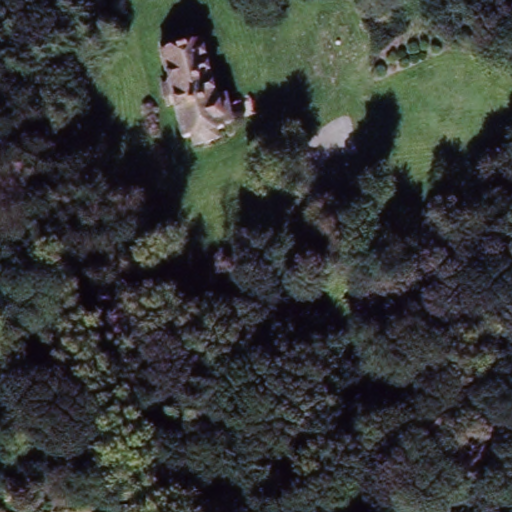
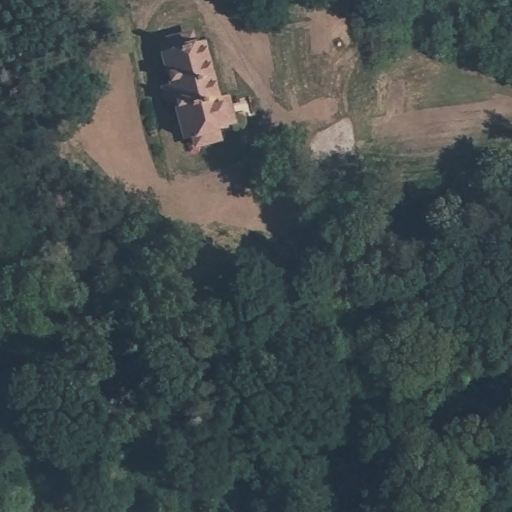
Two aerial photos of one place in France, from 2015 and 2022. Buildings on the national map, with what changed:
unchanged [(192,44),(196,55),(204,54),(218,109),(228,106),(234,131),(234,132),(225,134),(225,138),(218,139),(220,149),(199,154),(196,144),(188,146),(165,64),(162,54),(171,51),(171,49),(192,44)]

